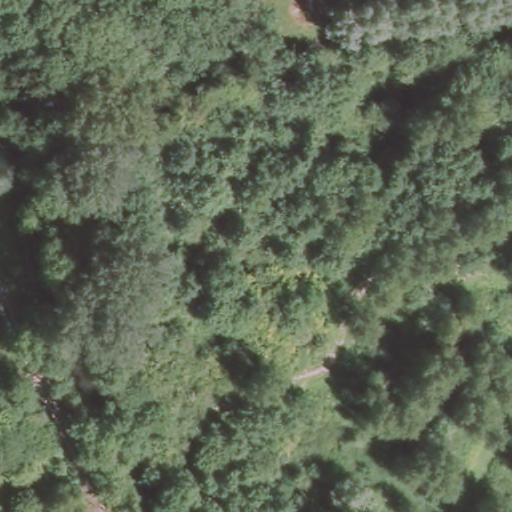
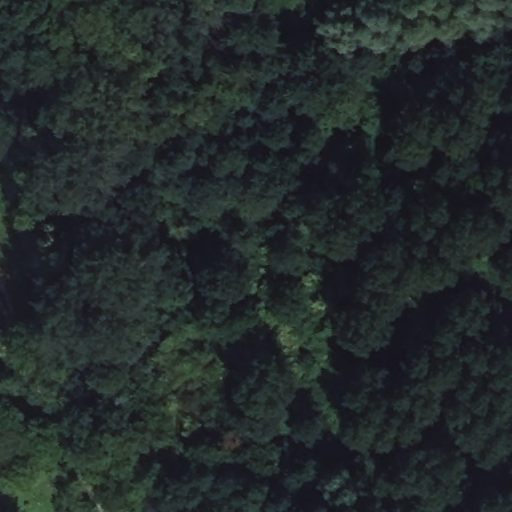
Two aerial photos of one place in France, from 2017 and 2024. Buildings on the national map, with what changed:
unchanged [(18,86),(2,90),(0,83),(0,57),(10,55),(14,69),(18,86)]

